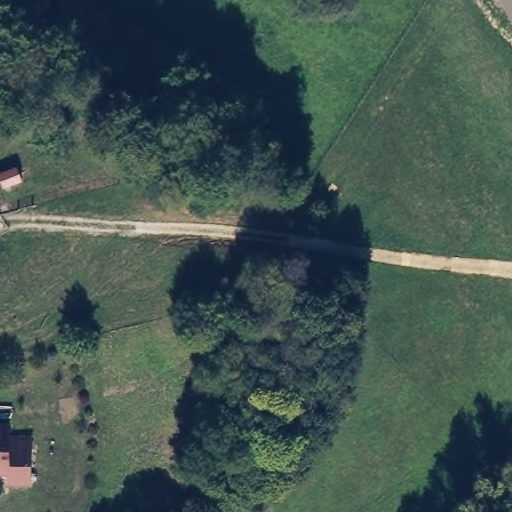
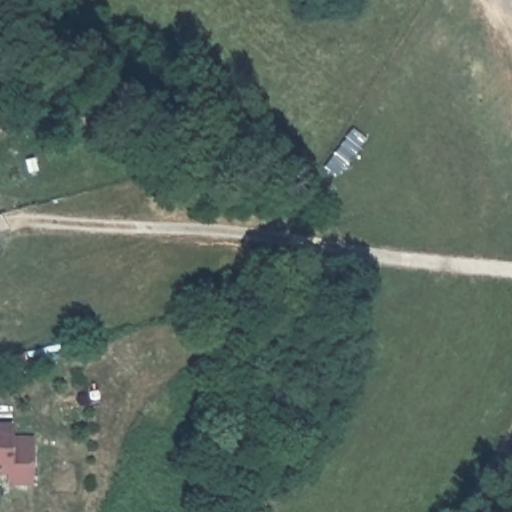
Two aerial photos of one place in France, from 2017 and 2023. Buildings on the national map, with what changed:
unchanged [(6,486),(6,471),(0,471),(0,421),(11,421),(13,435),(33,435),(32,485),(6,486)]

